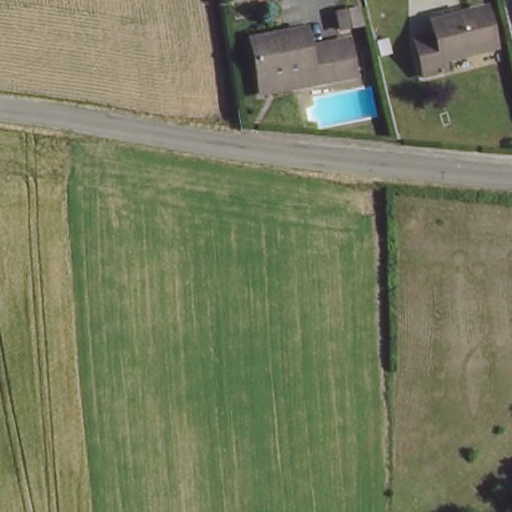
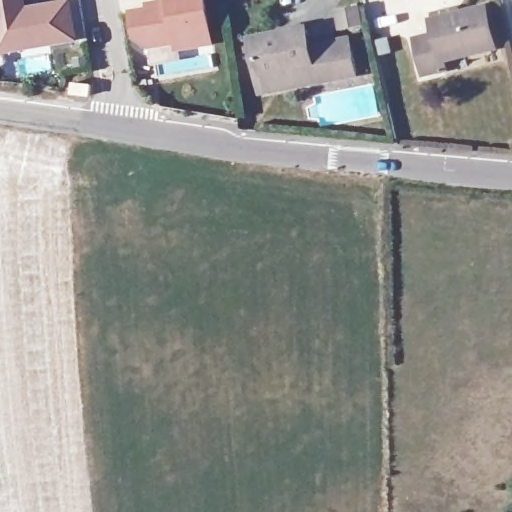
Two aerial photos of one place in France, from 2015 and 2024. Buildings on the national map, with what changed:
new [(23,8),(69,5),(71,44),(0,48),(0,0),(23,0),(23,8)]
new [(143,7),(143,2),(164,1),(164,0),(203,0),(205,47),(173,49),(173,44),(138,45),(136,27),(128,27),(126,8),(143,7)]
unchanged [(339,26),(336,11),(355,6),(359,22),(339,26)]
unchanged [(449,78),(427,85),(417,53),(439,45),(436,32),(488,17),(499,53),(447,70),(449,78)]
unchanged [(251,48),(304,38),(310,55),(329,52),(337,86),(313,90),(261,99),(258,84),(251,48)]

